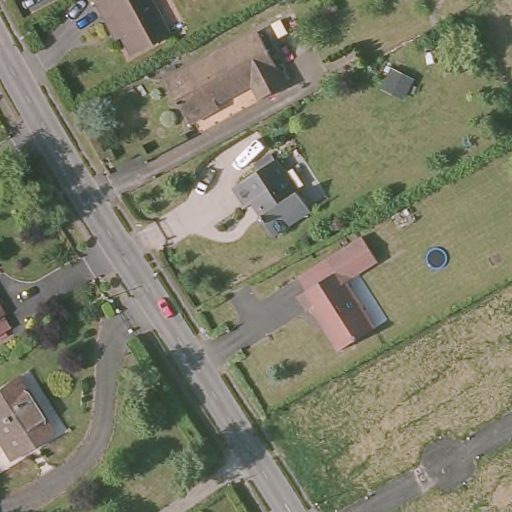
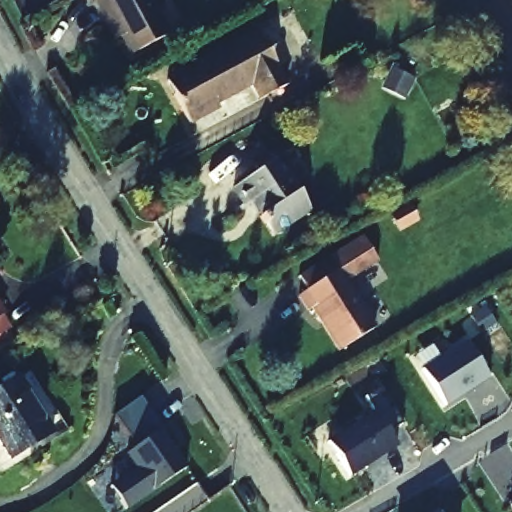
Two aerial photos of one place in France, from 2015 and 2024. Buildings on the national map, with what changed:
unchanged [(165,32),(127,49),(119,34),(111,38),(90,0),(148,0),(165,32)]
unchanged [(288,85),(259,101),(251,88),(208,111),(211,119),(190,130),(166,85),(257,35),(288,85)]
unchanged [(310,211),(271,237),(258,217),(265,213),(260,203),(255,204),(252,200),(243,205),(232,187),(257,170),(253,163),(269,152),(310,211)]
unchanged [(309,312),(305,315),(295,301),(303,295),(294,282),(348,244),(370,275),(346,292),(372,329),(337,354),(309,312)]
unchanged [(5,329),(0,331),(0,319),(5,329)]
new [(467,336),(490,371),(447,400),(424,364),(467,336)]
unchanged [(20,377),(50,437),(3,461),(0,457),(0,387),(20,377)]
new [(328,437),(374,407),(365,392),(379,382),(402,418),(389,427),(397,439),(350,471),(328,437)]
new [(133,502),(117,480),(144,461),(134,446),(167,423),(178,438),(177,442),(183,450),(185,448),(193,460),(133,502)]

